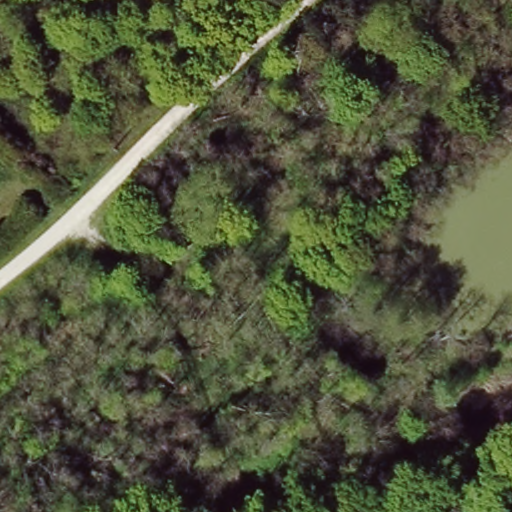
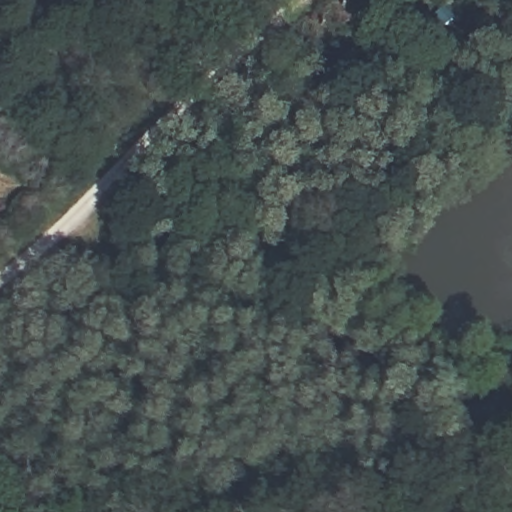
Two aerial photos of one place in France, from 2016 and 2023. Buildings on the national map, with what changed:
unchanged [(457,11),(446,23),(435,12),(447,1),(457,11)]
unchanged [(344,63),(355,52),(375,74),(365,85),(344,63)]

